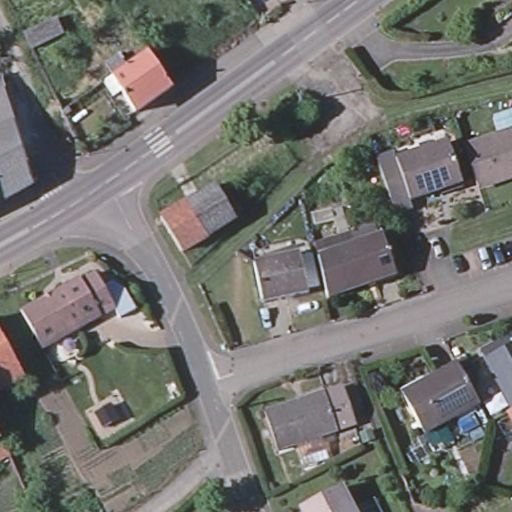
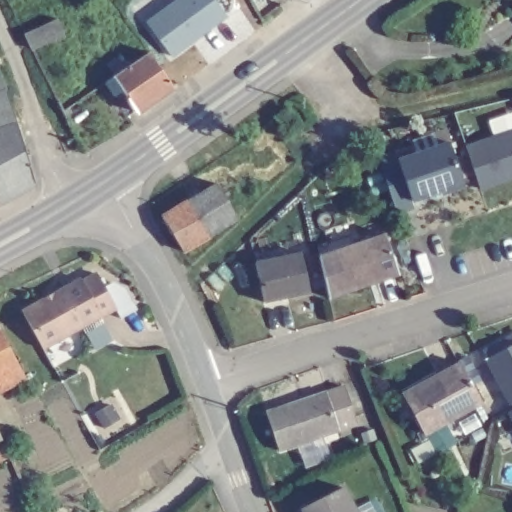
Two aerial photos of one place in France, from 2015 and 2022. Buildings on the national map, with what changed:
new [(215,0),(229,19),(173,58),(147,23),(177,0),(215,0)]
unchanged [(24,33),(55,18),(60,29),(62,34),(32,49),(31,47),(24,33)]
unchanged [(113,75),(106,64),(118,55),(126,66),(146,51),(170,85),(135,111),(112,75),(113,75)]
unchanged [(0,87),(1,89),(27,182),(0,198),(0,87)]
unchanged [(71,110),(65,114),(62,109),(69,106),(71,110)]
unchanged [(296,121),(282,130),(275,118),(289,108),(296,121)]
unchanged [(482,186),(468,146),(512,130),(512,175),(482,186)]
unchanged [(448,139),(463,180),(412,198),(398,158),(448,139)]
unchanged [(412,198),(415,205),(397,212),(378,154),(395,149),(398,158),(412,198)]
unchanged [(186,200),(217,183),(237,217),(207,235),(186,200)]
unchanged [(182,250),(160,217),(186,200),(207,235),(182,250)]
unchanged [(375,275),(376,279),(345,289),(327,295),(318,255),(316,244),(365,229),(380,224),(383,234),(395,269),(375,275)]
unchanged [(300,255),(310,253),(316,286),(307,288),(308,292),(263,302),(255,262),(299,253),(300,255)]
unchanged [(23,315),(25,309),(36,304),(52,294),(78,279),(80,282),(94,274),(114,309),(100,316),(41,349),(23,315)]
unchanged [(488,356),(485,351),(512,336),(512,408),(486,358),(488,356)]
unchanged [(0,382),(0,338),(19,372),(0,382)]
unchanged [(420,429),(397,389),(451,358),(474,399),(420,429)]
unchanged [(298,464),(292,446),(278,451),(264,411),(321,389),(340,383),(354,424),(336,430),(310,439),(316,458),(298,464)]
unchanged [(508,411),(512,409),(512,418),(508,411)]
unchanged [(10,455),(0,460),(0,448),(6,445),(10,455)]
unchanged [(355,512),(302,512),(301,509),(342,488),(355,512)]

